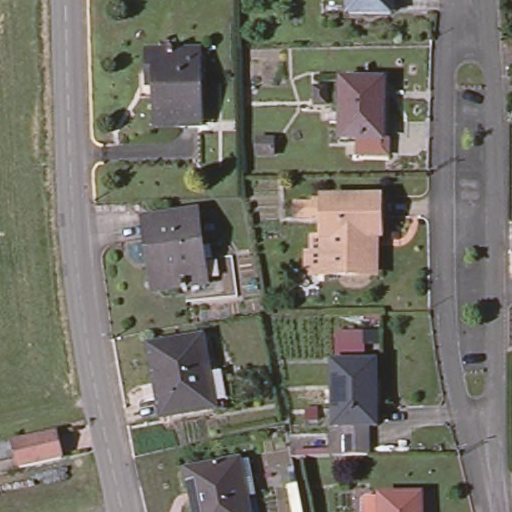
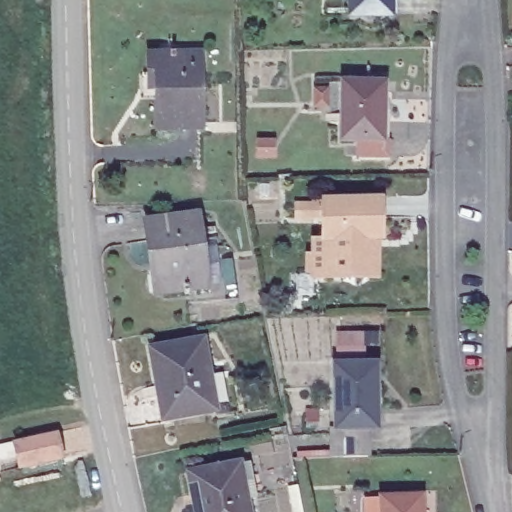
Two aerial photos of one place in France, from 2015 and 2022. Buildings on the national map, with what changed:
unchanged [(344,13),(344,0),(386,0),(387,12),(344,13)]
unchanged [(156,86),(151,86),(149,53),(200,51),(201,93),(156,95),(156,86)]
unchanged [(386,152),(353,152),(354,136),(339,135),(342,78),(381,79),(380,135),(386,135),(386,152)]
unchanged [(201,93),(201,127),(158,127),(156,95),(201,93)]
unchanged [(364,276),(316,278),(316,272),(305,272),(305,239),(316,239),(316,221),(306,221),(306,208),(316,208),(316,202),(371,202),(373,237),(374,276),(364,276)]
unchanged [(198,215),(207,285),(156,292),(146,222),(198,215)]
unchanged [(198,337),(203,362),(149,367),(146,347),(198,337)]
unchanged [(331,443),(330,415),(329,352),(369,351),(371,414),(364,414),(364,443),(331,443)]
unchanged [(203,362),(210,409),(158,418),(149,367),(203,362)]
unchanged [(61,458),(20,467),(14,441),(55,432),(61,458)]
unchanged [(183,472),(235,461),(245,459),(251,496),(241,497),(244,512),(190,512),(183,472)]
unchanged [(419,495),(420,512),(380,512),(380,496),(419,495)]

